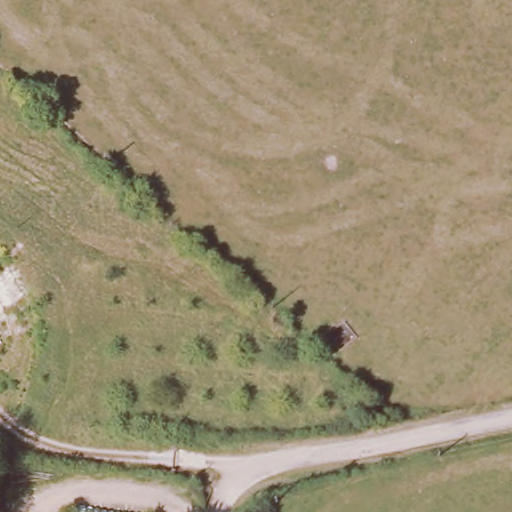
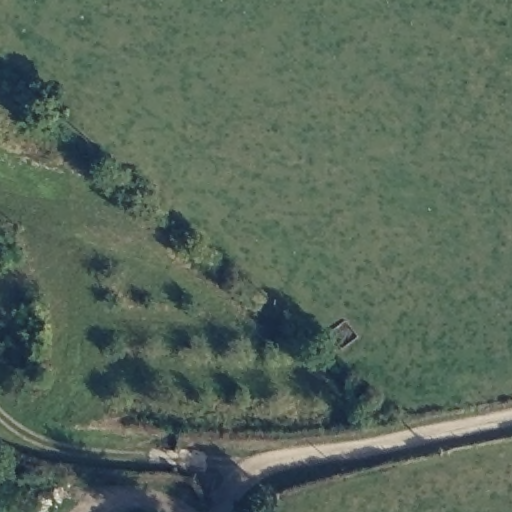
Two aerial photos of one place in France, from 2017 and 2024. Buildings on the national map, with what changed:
unchanged [(356,309),(367,326),(347,338),(337,321),(356,309)]

